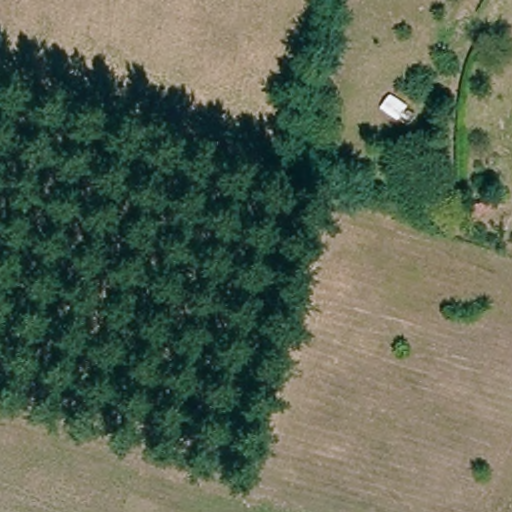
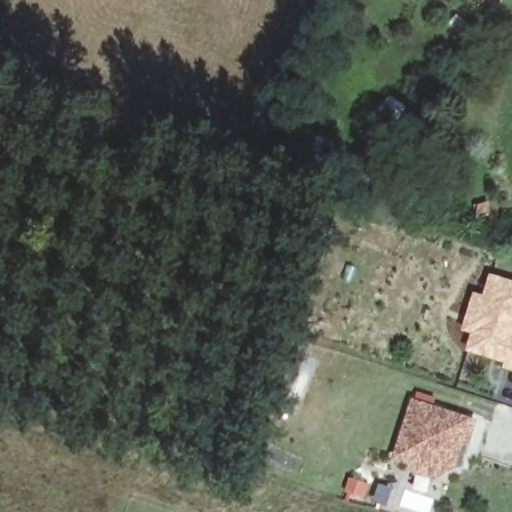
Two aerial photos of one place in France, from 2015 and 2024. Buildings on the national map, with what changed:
new [(491,273),(512,281),(512,373),(504,371),(506,362),(467,352),(472,334),(463,332),(475,292),(484,295),(491,273)]
new [(477,420),(470,448),(465,447),(457,470),(452,468),(430,484),(414,478),(409,464),(393,460),(412,398),(477,420)]

